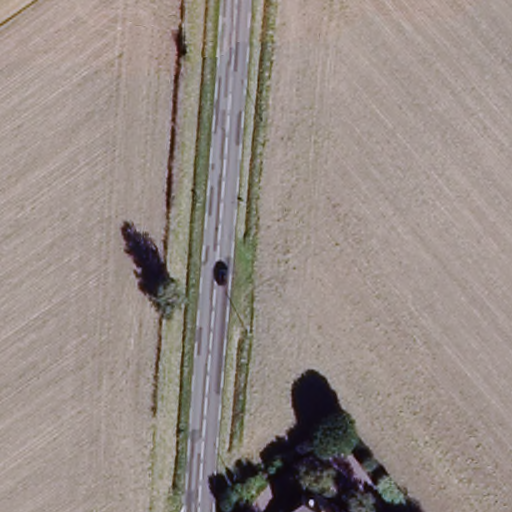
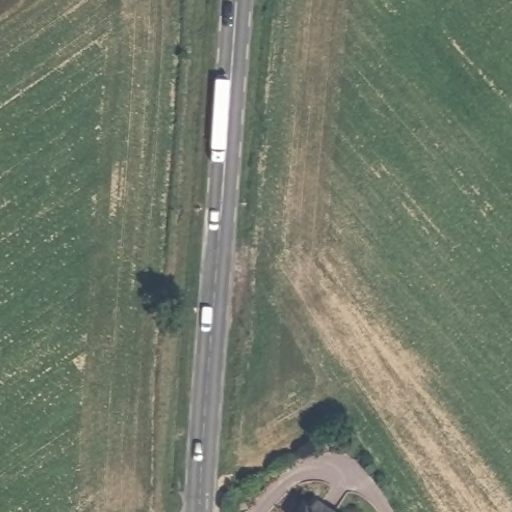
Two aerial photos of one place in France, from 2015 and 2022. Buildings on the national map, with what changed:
unchanged [(312,512),(318,503),(331,512),(312,512)]

